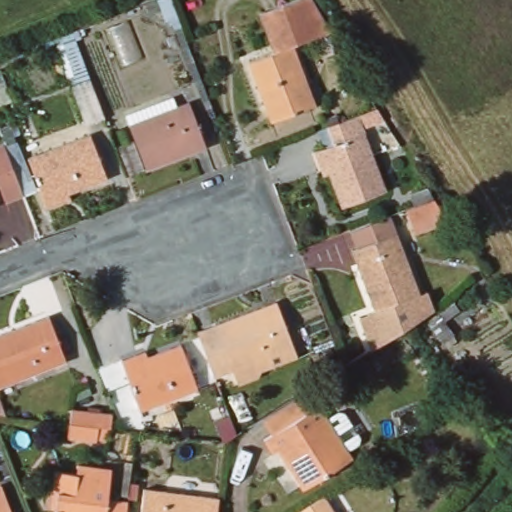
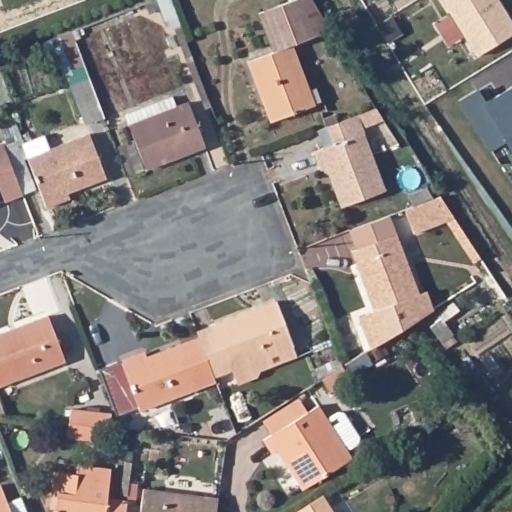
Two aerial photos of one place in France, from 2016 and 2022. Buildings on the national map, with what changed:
unchanged [(310,5),(313,9),(328,34),(290,49),(313,108),(272,124),(248,65),(271,56),(258,21),(256,16),(298,0),(307,0),(308,1),(310,5)]
new [(512,23),(512,34),(477,56),(442,0),(498,0),(512,23)]
unchanged [(100,112),(81,120),(66,82),(85,75),(100,112)]
new [(499,94),(512,86),(512,87),(512,150),(506,140),(490,150),(460,101),(477,91),(485,103),(499,94)]
unchanged [(174,104),(187,99),(206,145),(130,177),(119,147),(135,140),(123,111),(170,92),(174,104)]
unchanged [(363,136),(386,191),(350,205),(336,172),(327,174),(318,151),(347,141),(339,122),(354,114),(359,123),(365,134),(363,136)]
unchanged [(97,172),(64,188),(65,193),(47,199),(30,157),(83,135),(97,172)]
unchanged [(2,201),(0,197),(0,149),(18,194),(2,201)]
unchanged [(440,211),(447,223),(421,233),(411,211),(434,201),(440,211)]
unchanged [(382,310),(358,251),(364,248),(356,229),(389,215),(397,235),(421,295),(382,310)]
unchanged [(382,310),(421,295),(431,291),(439,317),(378,348),(364,319),(382,310)]
unchanged [(236,380),(230,364),(212,372),(195,330),(272,298),(292,351),(256,367),(257,371),(236,380)]
unchanged [(46,318),(64,363),(0,387),(0,336),(46,318)]
unchanged [(201,386),(143,410),(119,356),(141,349),(145,355),(182,340),(201,386)]
unchanged [(360,387),(352,374),(347,378),(343,367),(368,351),(371,361),(380,373),(360,387)]
unchanged [(300,488),(275,450),(269,453),(260,439),(269,433),(261,421),(296,398),(305,410),(316,403),(350,456),(300,488)]
unchanged [(80,439),(81,427),(82,415),(109,417),(107,429),(106,443),(80,439)]
unchanged [(49,504),(53,482),(71,485),(72,475),(107,479),(104,506),(126,509),(125,512),(53,512),(54,505),(49,504)]
unchanged [(288,512),(284,506),(315,486),(331,512),(288,512)]
unchanged [(0,488),(10,512),(0,512),(0,488)]
unchanged [(199,498),(198,512),(138,512),(140,491),(199,498)]

